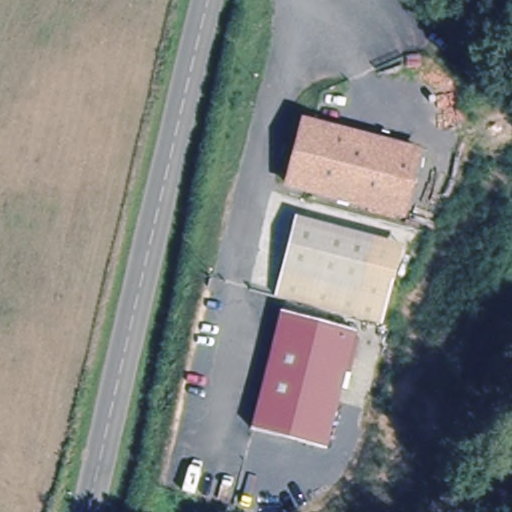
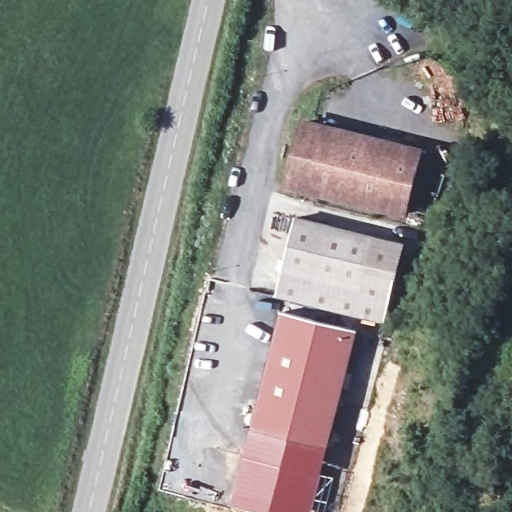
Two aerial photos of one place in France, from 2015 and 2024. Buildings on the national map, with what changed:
unchanged [(402,216),(287,179),(306,117),(420,153),(402,216)]
unchanged [(365,272),(394,280),(381,326),(287,298),(275,295),(297,217),(375,237),(365,272)]
unchanged [(403,246),(394,280),(365,272),(375,237),(403,246)]
unchanged [(284,315),(357,335),(327,450),(255,432),(284,315)]
new [(322,473),(335,478),(326,512),(266,512),(238,503),(255,432),(327,450),(322,473)]

